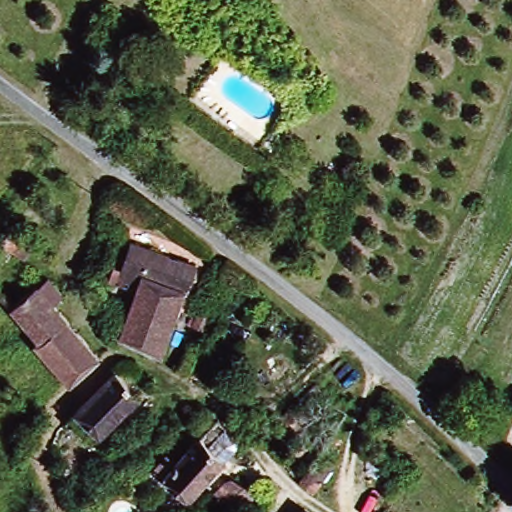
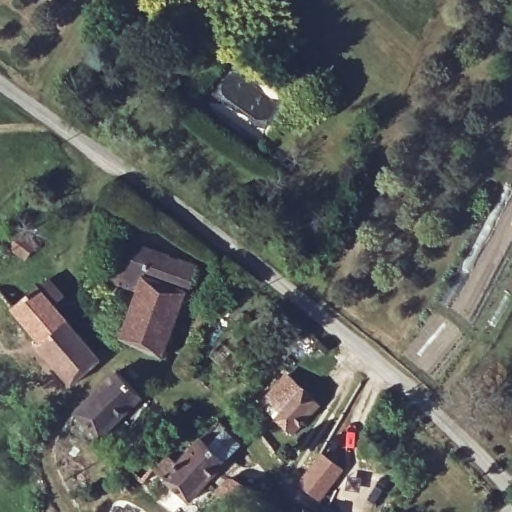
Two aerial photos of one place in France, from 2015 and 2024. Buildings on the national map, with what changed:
unchanged [(47,240),(33,227),(45,215),(60,229),(47,240)]
unchanged [(195,264),(165,344),(125,324),(123,323),(135,285),(108,274),(114,259),(122,263),(131,238),(195,264)]
unchanged [(38,339),(12,304),(40,286),(49,279),(63,297),(53,304),(98,363),(67,383),(35,341),(38,339)]
unchanged [(205,328),(213,312),(225,318),(216,334),(205,328)]
new [(292,434),(258,402),(285,373),(319,404),(292,434)]
unchanged [(114,374),(137,400),(97,432),(74,407),(114,374)]
unchanged [(190,443),(196,438),(203,431),(215,419),(229,434),(240,445),(225,461),(216,469),(196,491),(191,488),(168,467),(161,462),(175,446),(182,452),(190,443)]
unchanged [(130,477),(127,476),(125,473),(124,471),(121,468),(143,442),(155,452),(135,474),(130,477)]
unchanged [(331,491),(317,479),(334,459),(346,467),(331,491)]
unchanged [(231,502),(213,484),(236,474),(257,488),(231,502)]
unchanged [(311,512),(302,512),(305,508),(311,512)]
unchanged [(253,509),(255,512),(248,512),(253,509)]

